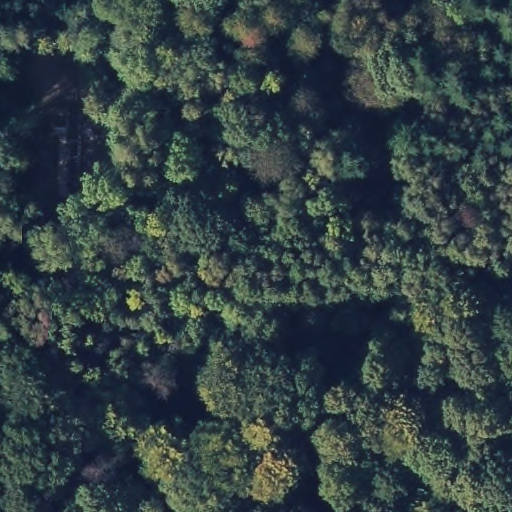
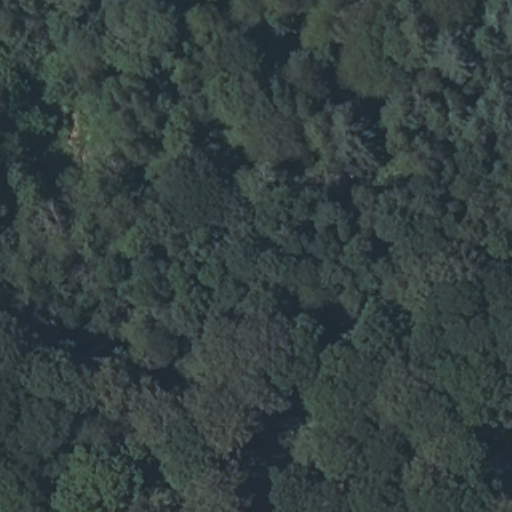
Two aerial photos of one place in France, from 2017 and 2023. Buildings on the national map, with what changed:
unchanged [(254,67),(249,106),(159,98),(164,59),(254,67)]

